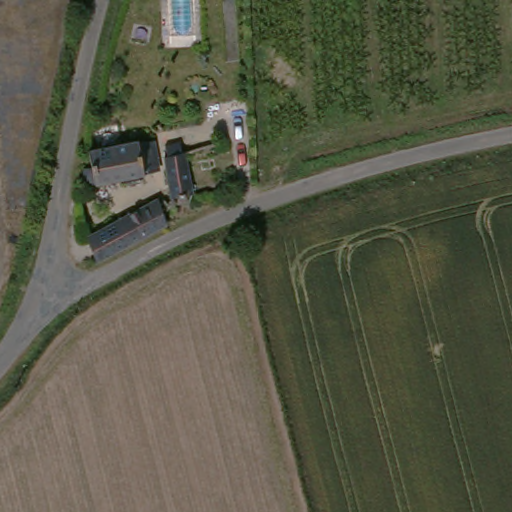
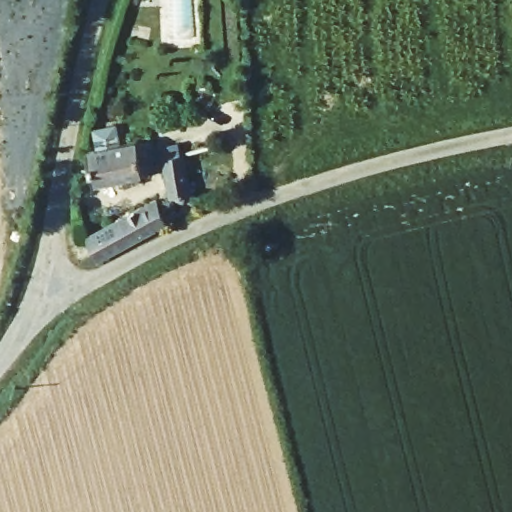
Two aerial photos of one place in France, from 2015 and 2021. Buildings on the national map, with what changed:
unchanged [(88,185),(94,148),(157,136),(163,171),(88,185)]
unchanged [(173,204),(164,149),(183,146),(193,201),(173,204)]
unchanged [(171,227),(99,269),(90,243),(159,205),(171,227)]

